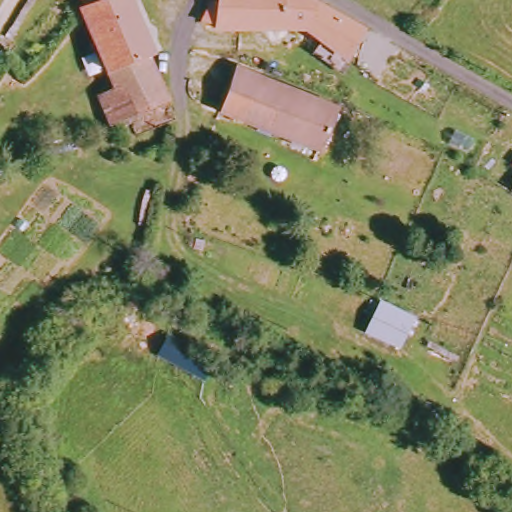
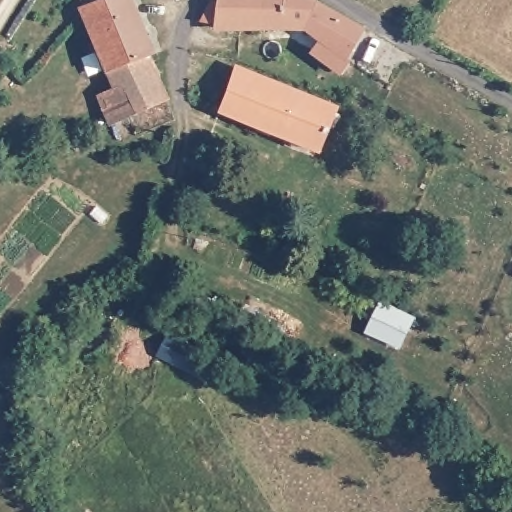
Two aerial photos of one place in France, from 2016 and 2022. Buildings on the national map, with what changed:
unchanged [(150,55),(170,105),(113,131),(99,98),(116,87),(84,9),(108,0),(136,0),(156,52),(150,55)]
unchanged [(226,29),(226,25),(209,24),(206,24),(214,1),(226,1),(226,0),(320,0),(374,30),(358,60),(309,29),(226,29)]
unchanged [(336,111),(319,155),(221,113),(239,68),(336,111)]
unchanged [(421,323),(408,350),(376,333),(389,307),(421,323)]

